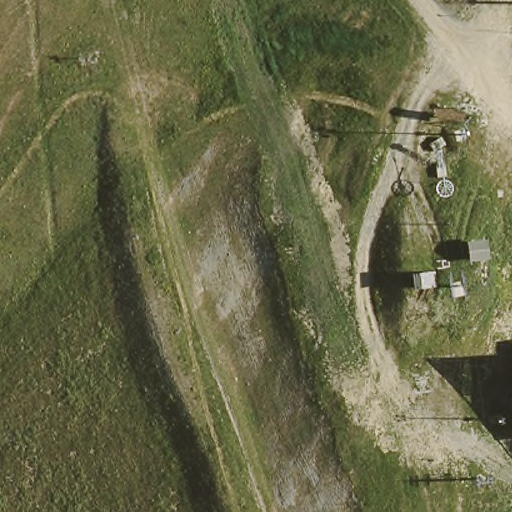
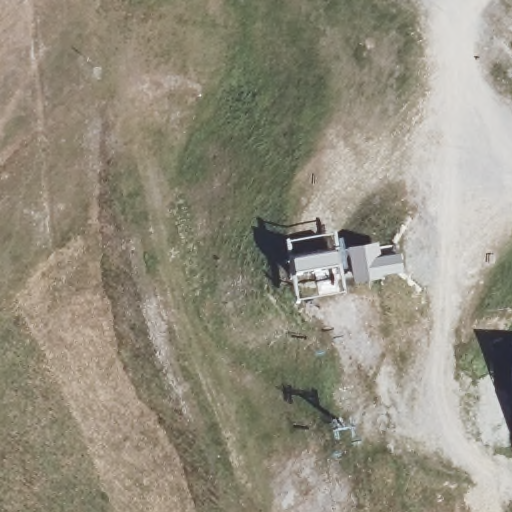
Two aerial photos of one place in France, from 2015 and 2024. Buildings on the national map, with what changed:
new [(378,242),(380,255),(400,253),(402,270),(382,274),(382,277),(352,282),(347,248),(378,242)]
new [(341,268),(317,272),(292,275),(289,254),(337,247),(341,268)]
unchanged [(512,353),(512,371),(510,353),(512,353)]

